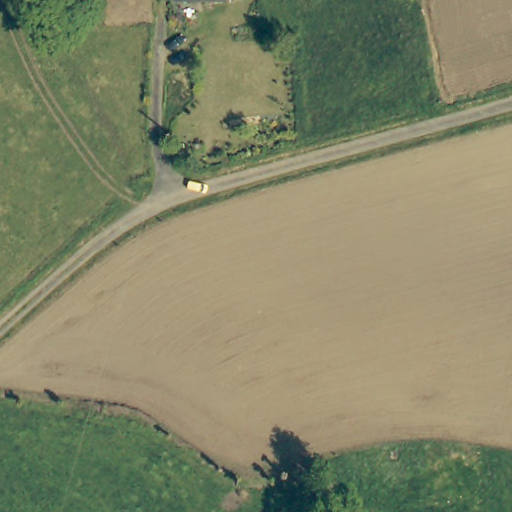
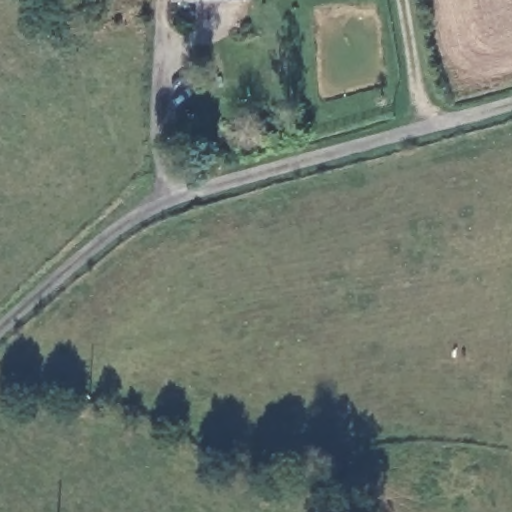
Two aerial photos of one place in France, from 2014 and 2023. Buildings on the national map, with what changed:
unchanged [(169,0),(228,0),(228,3),(168,1),(169,0)]

